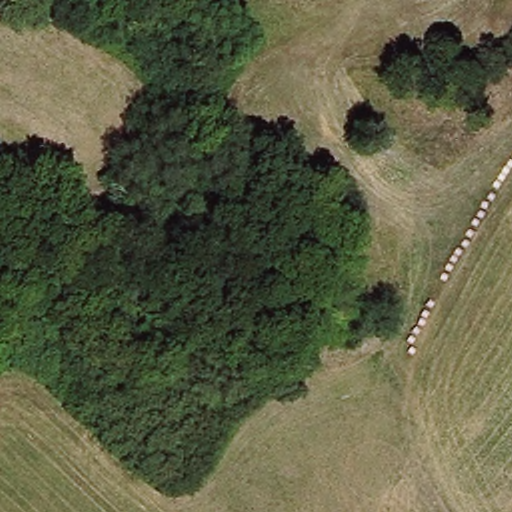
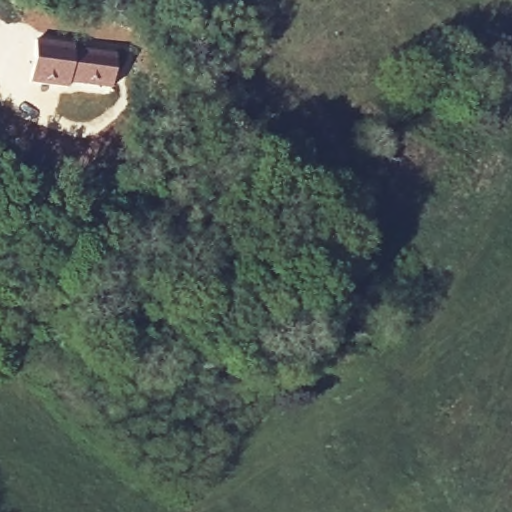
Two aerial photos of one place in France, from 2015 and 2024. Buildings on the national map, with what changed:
new [(35,41),(71,45),(70,50),(114,56),(109,88),(65,82),(65,87),(30,84),(35,41)]
unchanged [(310,301),(340,315),(333,331),(300,312),(310,301)]

